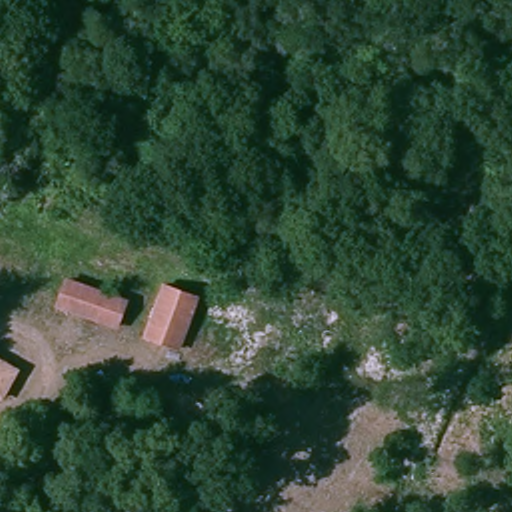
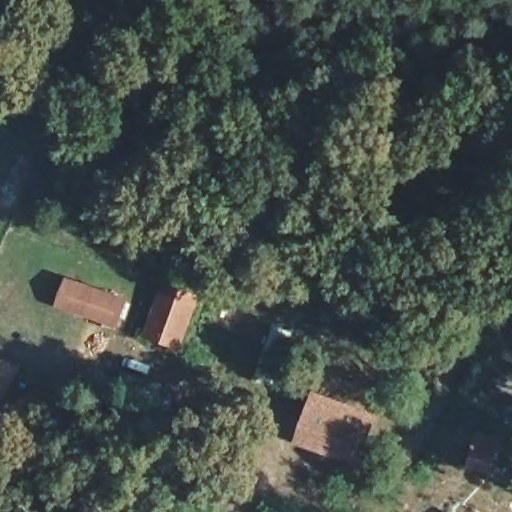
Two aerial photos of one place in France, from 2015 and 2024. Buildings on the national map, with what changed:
unchanged [(130,303),(121,329),(59,304),(69,277),(130,303)]
unchanged [(196,293),(194,303),(177,347),(147,335),(166,283),(196,293)]
unchanged [(16,367),(3,397),(0,396),(0,359),(16,367)]
new [(380,414),(360,467),(293,443),(315,390),(380,414)]

